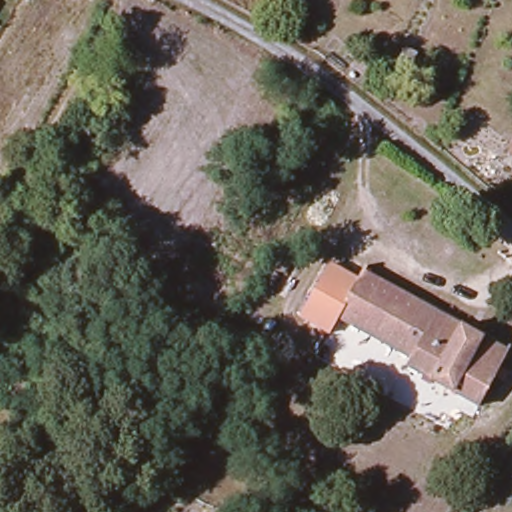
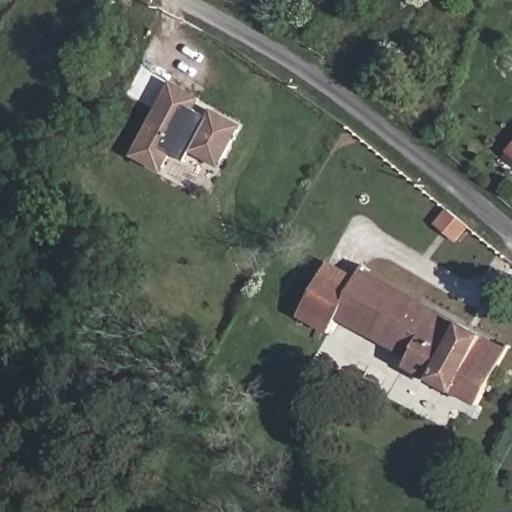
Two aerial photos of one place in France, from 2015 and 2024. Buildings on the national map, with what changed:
unchanged [(0,0),(2,1),(0,4),(0,0)]
unchanged [(405,71),(393,64),(391,63),(402,45),(404,47),(416,54),(405,71)]
new [(189,93),(199,99),(193,109),(208,117),(211,111),(239,127),(217,166),(190,151),(184,161),(168,152),(159,170),(131,154),(171,83),(189,93)]
demolished [(436,197),(428,212),(414,205),(424,186),(426,183),(440,191),(436,197)]
new [(445,209),(468,229),(458,242),(433,223),(445,209)]
unchanged [(338,321),(329,334),(298,317),(330,262),(362,280),(338,321)]
unchanged [(506,352),(476,408),(389,359),(393,352),(338,321),(365,275),(506,352)]

